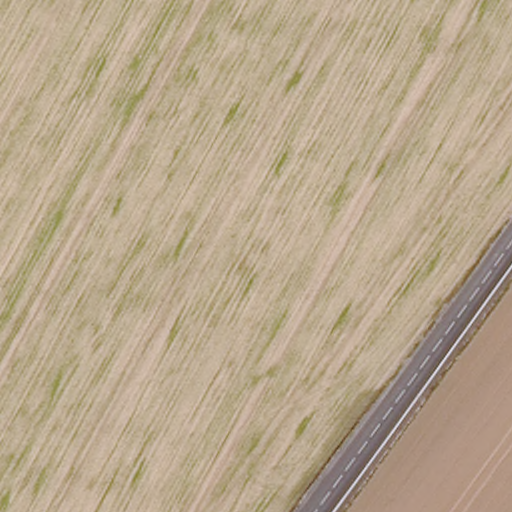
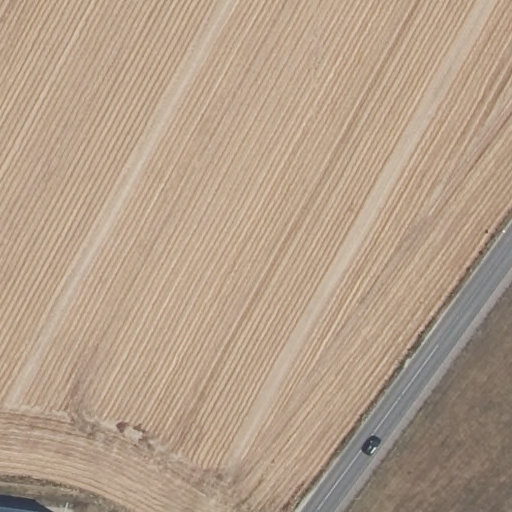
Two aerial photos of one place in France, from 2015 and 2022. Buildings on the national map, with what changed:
new [(31,512),(0,512),(0,508),(31,512)]

